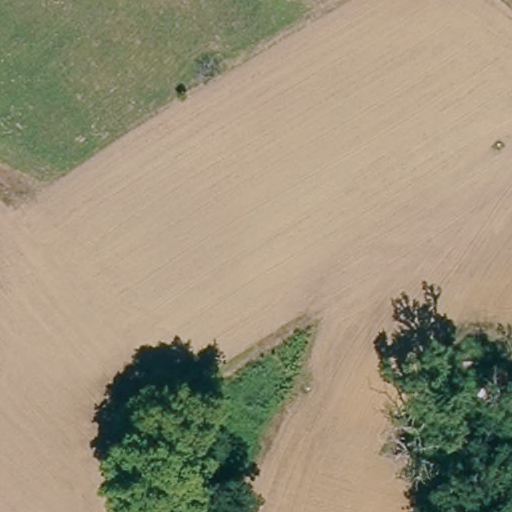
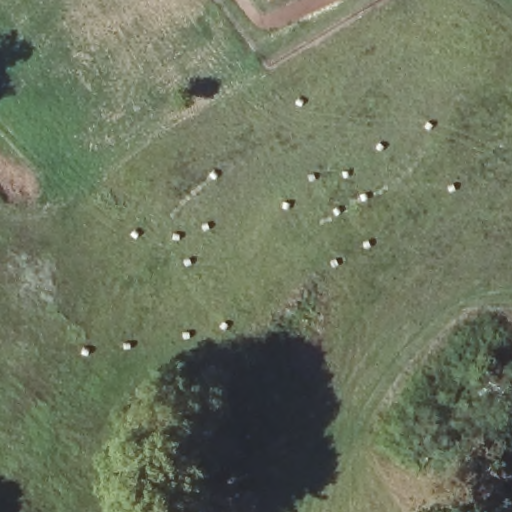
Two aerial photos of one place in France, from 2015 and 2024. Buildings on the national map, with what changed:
unchanged [(496,391),(480,416),(463,405),(478,380),(496,391)]

